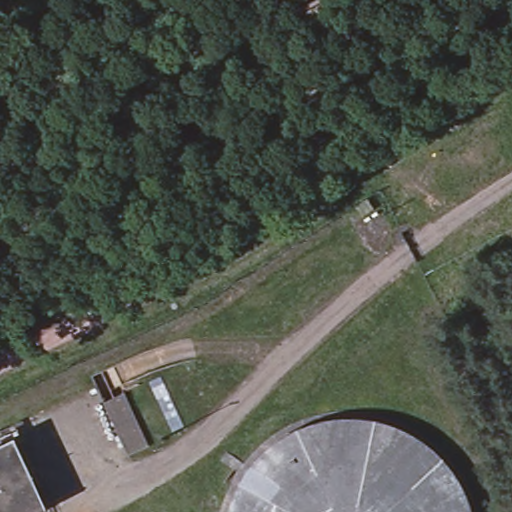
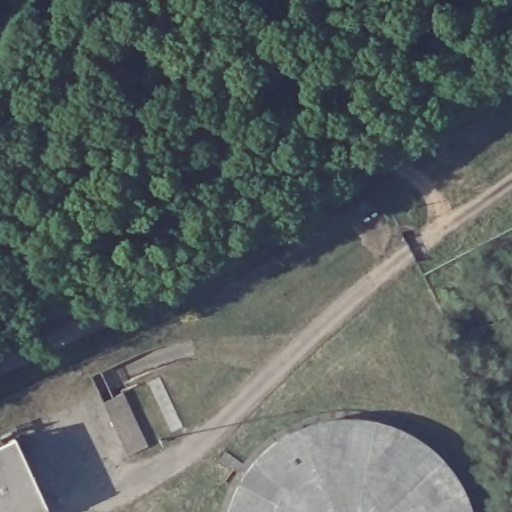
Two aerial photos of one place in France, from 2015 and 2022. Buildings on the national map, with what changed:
unchanged [(16,434),(51,504),(36,512),(0,512),(0,442),(16,434)]

